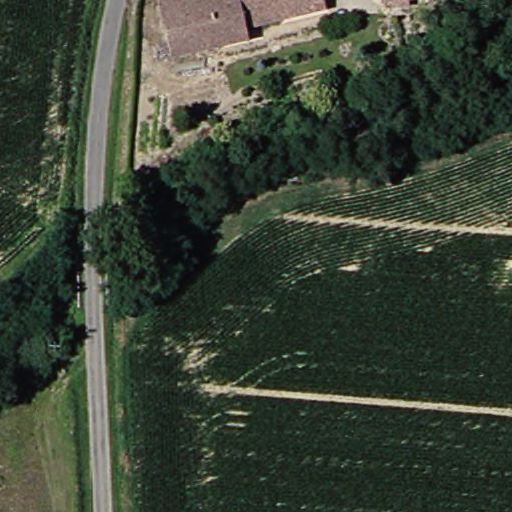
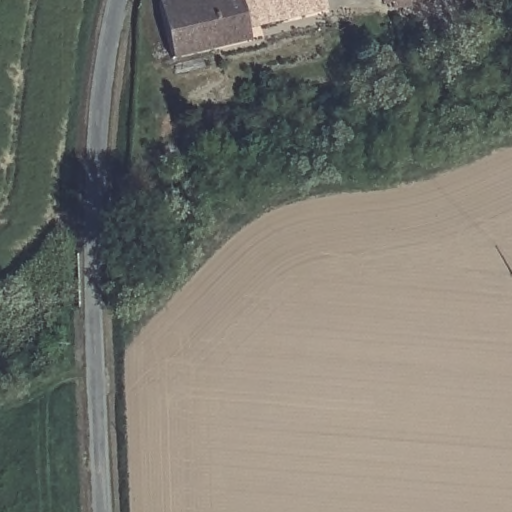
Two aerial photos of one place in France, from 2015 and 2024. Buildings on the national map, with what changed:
unchanged [(176,60),(162,2),(172,0),(324,0),(326,8),(285,17),(247,25),(250,41),(220,49),(176,60)]
unchanged [(407,7),(397,8),(395,2),(385,2),(384,0),(430,0),(410,1),(407,7)]
unchanged [(430,0),(447,0),(447,6),(431,6),(430,0)]

